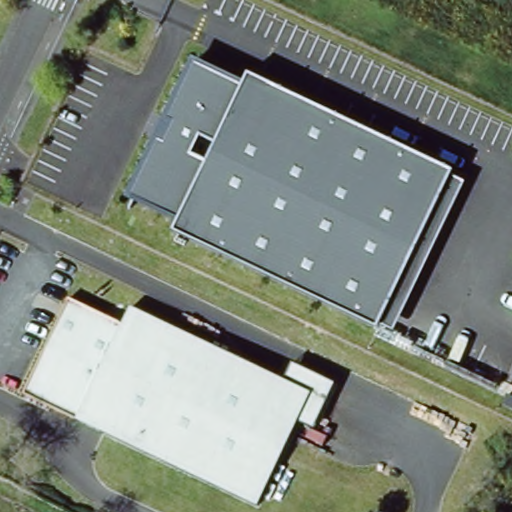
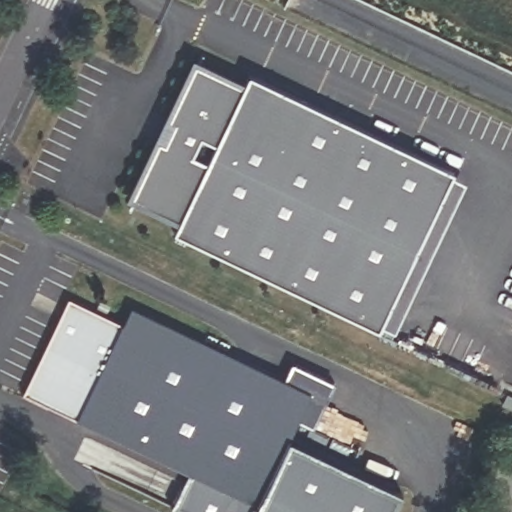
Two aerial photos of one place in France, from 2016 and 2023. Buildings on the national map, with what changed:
unchanged [(246,80),(248,73),(452,171),(450,175),(465,181),(395,330),(380,323),(378,327),(174,230),(177,224),(126,198),(193,57),(246,80)]
unchanged [(122,323),(131,307),(284,379),(292,362),(335,383),(315,426),(298,422),(258,504),(76,418),(23,393),(68,298),(122,323)]
new [(290,439),(403,493),(394,512),(183,512),(175,508),(191,473),(258,504),(290,439)]

